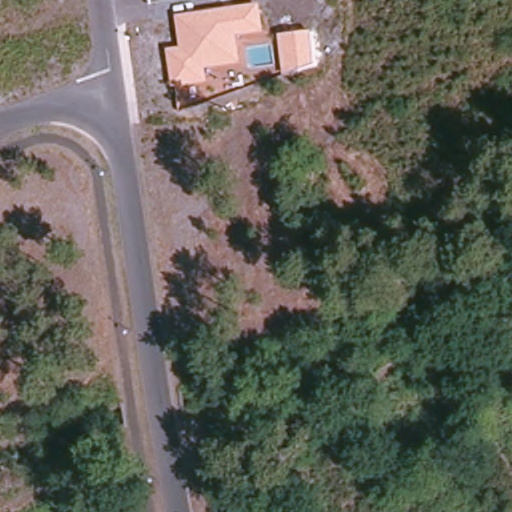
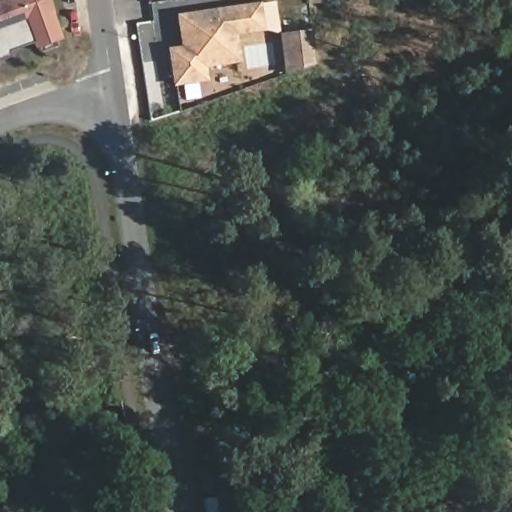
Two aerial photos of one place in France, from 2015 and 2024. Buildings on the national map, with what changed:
new [(31,43),(8,51),(10,56),(0,60),(0,0),(46,0),(60,39),(33,49),(31,43)]
unchanged [(264,33),(238,35),(243,62),(206,67),(208,82),(172,87),(166,48),(181,46),(177,14),(260,3),(264,33)]
unchanged [(285,73),(278,34),(311,29),(315,62),(285,73)]

